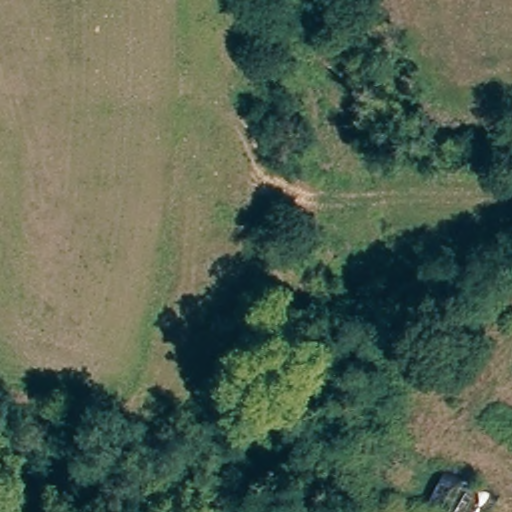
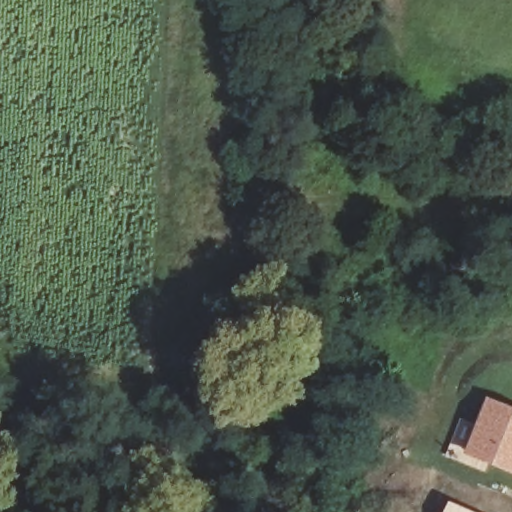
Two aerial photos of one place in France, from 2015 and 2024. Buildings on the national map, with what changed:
new [(512,408),(512,475),(466,456),(488,398),(512,408)]
new [(472,512),(445,512),(449,502),(472,512)]

